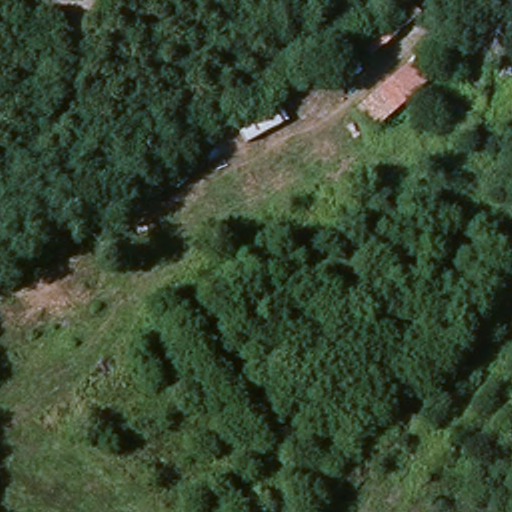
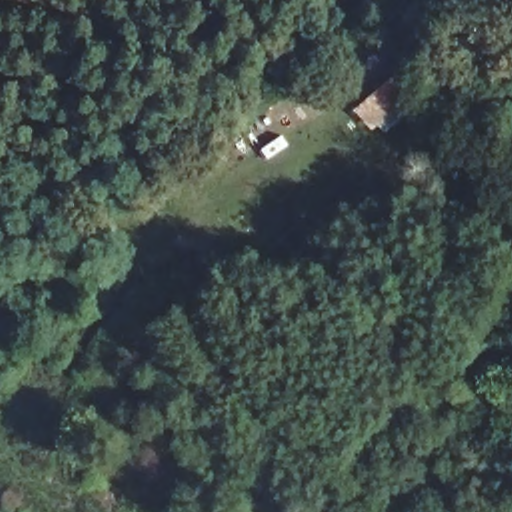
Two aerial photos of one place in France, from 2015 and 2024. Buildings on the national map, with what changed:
unchanged [(350,35),(392,0),(397,0),(411,16),(367,54),(350,35)]
unchanged [(367,129),(345,110),(400,61),(420,82),(367,129)]

